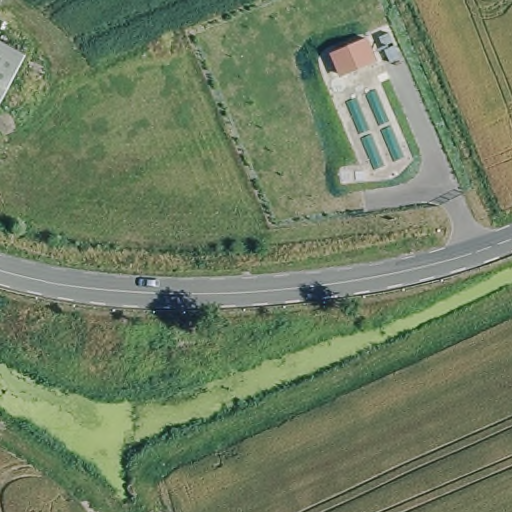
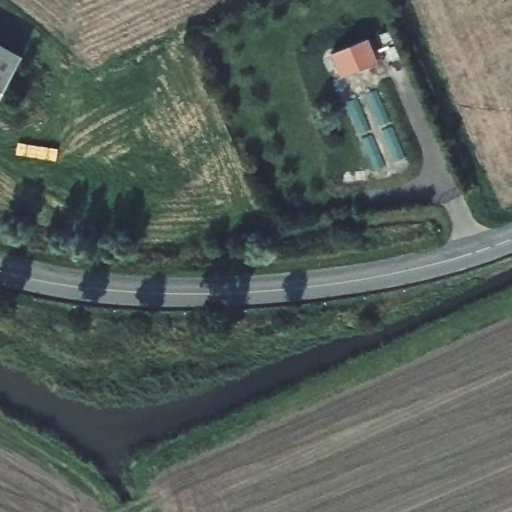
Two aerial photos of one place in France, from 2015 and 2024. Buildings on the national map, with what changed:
unchanged [(367,34),(379,62),(342,80),(330,52),(367,34)]
unchanged [(0,112),(0,50),(26,64),(0,112)]

